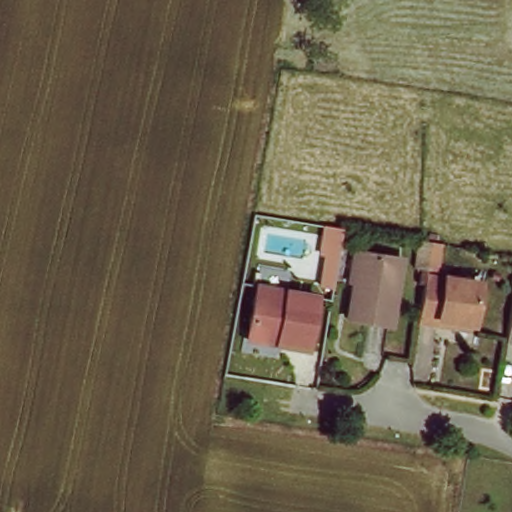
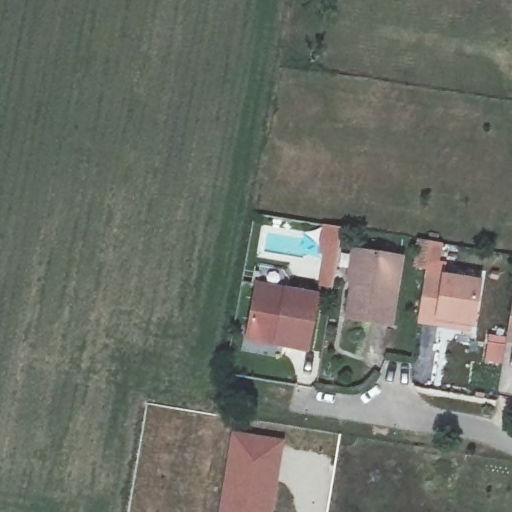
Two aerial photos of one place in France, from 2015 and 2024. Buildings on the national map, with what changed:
unchanged [(400,257),(389,326),(346,318),(357,250),(400,257)]
unchanged [(439,326),(420,323),(426,285),(427,277),(445,280),(480,285),(474,327),(472,332),(439,326)]
unchanged [(245,335),(253,288),(311,297),(302,353),(273,349),(244,345),(245,335)]
unchanged [(509,339),(512,316),(512,340),(509,339)]
new [(235,435),(283,443),(272,512),(223,512),(235,435)]

